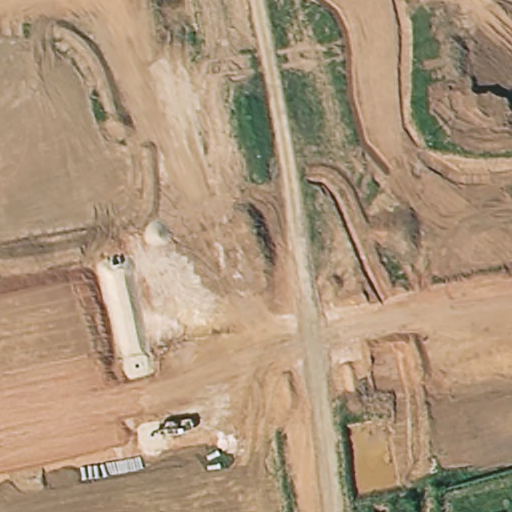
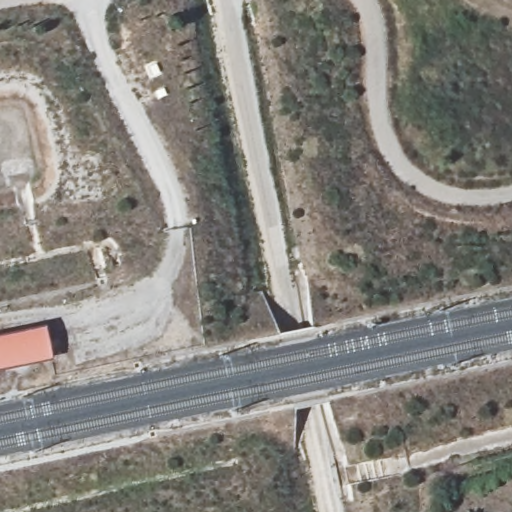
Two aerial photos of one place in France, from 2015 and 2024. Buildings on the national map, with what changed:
new [(0,370),(0,335),(41,326),(53,358),(0,370)]

